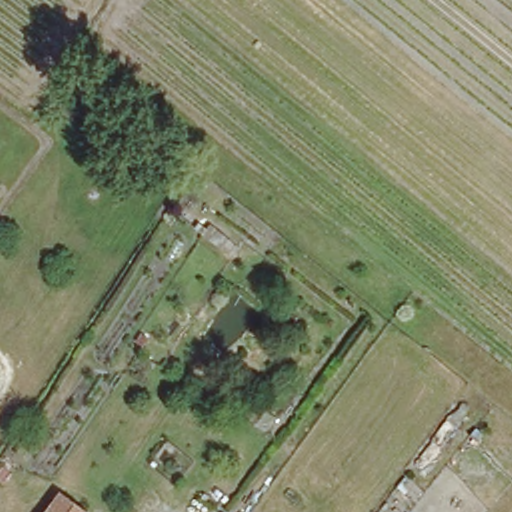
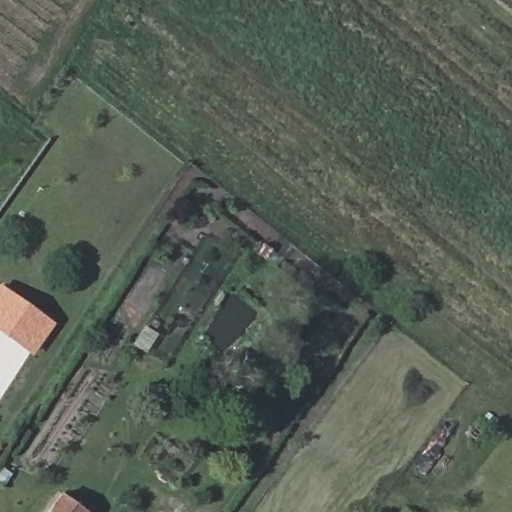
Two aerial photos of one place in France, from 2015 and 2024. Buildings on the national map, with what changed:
new [(54,323),(31,355),(0,333),(0,285),(54,323)]
unchanged [(60,492),(85,512),(48,512),(60,492)]

